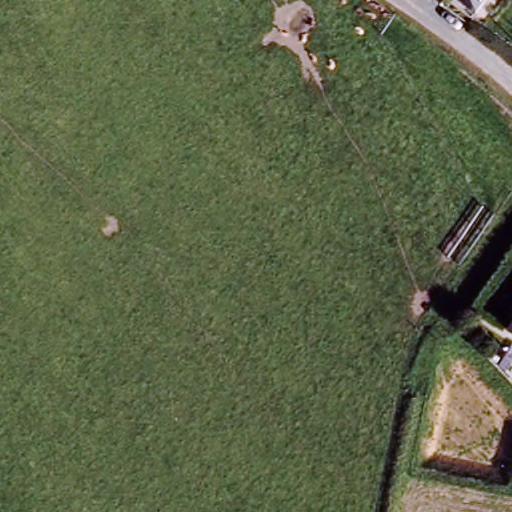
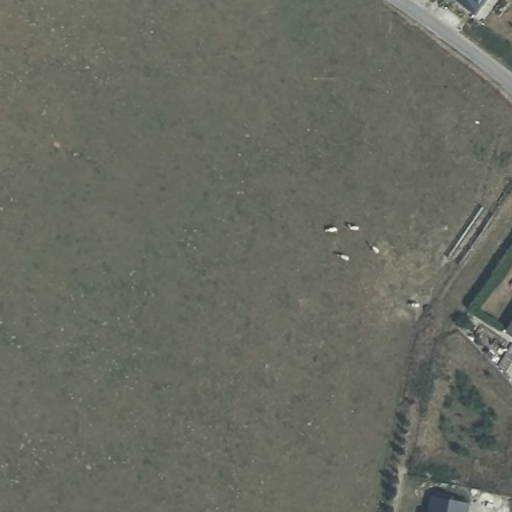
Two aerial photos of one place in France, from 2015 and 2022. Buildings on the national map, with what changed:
unchanged [(466,0),(492,0),(483,12),(466,0)]
unchanged [(509,327),(512,323),(512,330),(509,327)]
new [(436,498),(469,506),(468,512),(433,512),(436,498)]

